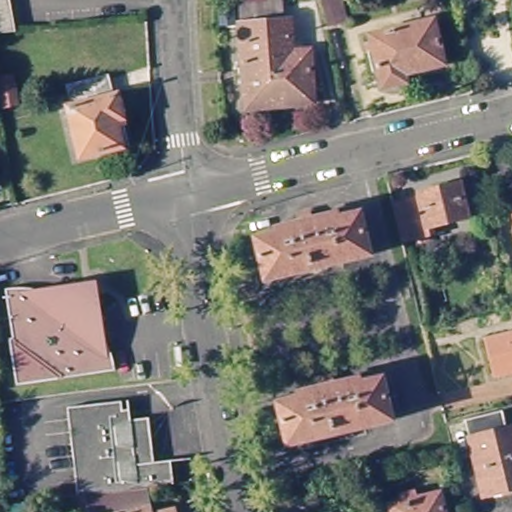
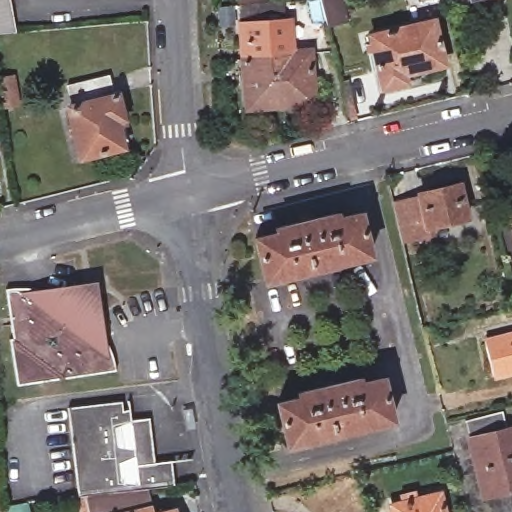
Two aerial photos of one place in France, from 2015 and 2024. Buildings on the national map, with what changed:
unchanged [(0,39),(0,0),(13,0),(20,38),(0,39)]
unchanged [(280,25),(282,59),(300,58),(302,108),(239,111),(237,61),(240,61),(238,26),(234,26),(233,7),(233,0),(262,0),(262,6),(274,6),(275,25),(280,25)]
unchanged [(344,0),(346,10),(348,20),(328,25),(325,14),(321,0),(344,0)]
unchanged [(433,24),(443,68),(403,78),(405,86),(382,91),(369,40),(433,24)]
unchanged [(2,74),(20,71),(26,103),(8,106),(2,74)]
unchanged [(110,73),(114,94),(119,93),(124,118),(117,120),(122,148),(80,156),(70,105),(73,105),(68,81),(110,73)]
unchanged [(427,190),(426,187),(464,178),(473,212),(434,221),(437,232),(424,235),(408,238),(398,197),(414,193),(427,190)]
unchanged [(278,238),(276,232),(300,227),(299,219),(310,217),(312,224),(337,218),(339,223),(361,218),(371,259),(266,284),(255,243),(278,238)]
unchanged [(90,326),(93,330),(95,334),(98,338),(100,343),(103,350),(105,356),(107,364),(109,372),(56,378),(8,340),(2,288),(9,288),(19,288),(24,289),(31,290),(38,291),(43,293),(48,295),(54,297),(58,300),(71,284),(96,303),(84,319),(87,322),(90,326)]
unchanged [(512,378),(499,381),(490,346),(512,340),(512,378)]
unchanged [(299,402),(298,398),(322,393),(320,385),(333,382),(335,389),(359,383),(360,388),(382,383),(393,425),(288,450),(278,408),(299,402)]
unchanged [(76,497),(68,410),(121,404),(128,403),(129,412),(130,423),(150,421),(155,466),(172,464),(174,485),(145,489),(84,496),(76,497)]
unchanged [(512,438),(512,500),(484,507),(470,449),(465,431),(475,429),(502,423),(506,439),(512,438)]
unchanged [(84,496),(145,489),(150,512),(87,512),(84,496)]
unchanged [(403,510),(401,504),(410,502),(410,498),(426,494),(428,502),(446,498),(449,512),(397,512),(403,510)]
unchanged [(174,509),(174,512),(157,512),(174,509)]

